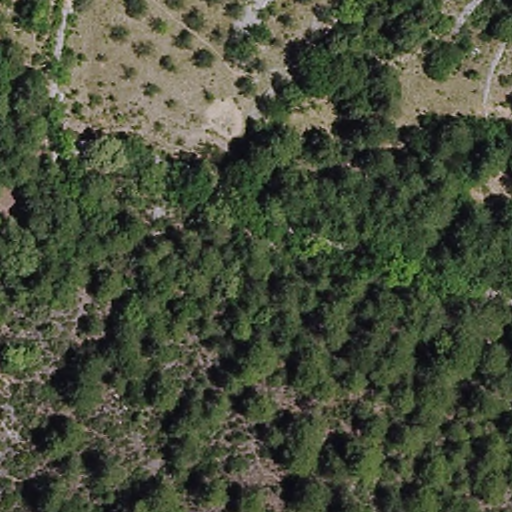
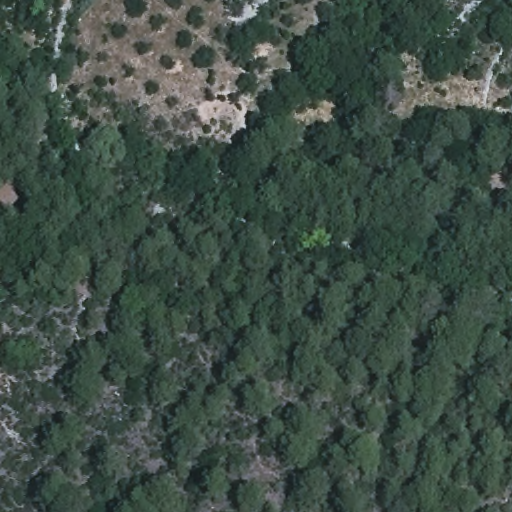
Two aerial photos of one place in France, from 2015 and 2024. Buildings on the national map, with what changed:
[]

